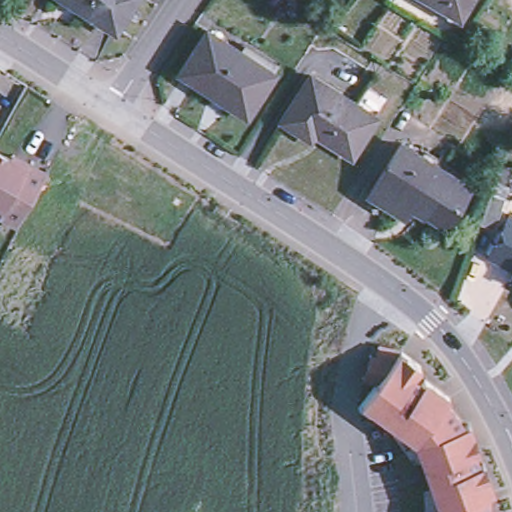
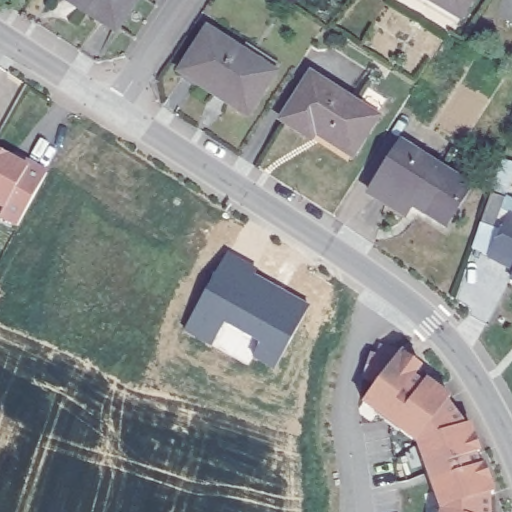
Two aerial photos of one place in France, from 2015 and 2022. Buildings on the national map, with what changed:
unchanged [(112,28),(76,5),(68,0),(129,0),(112,28)]
unchanged [(425,0),(470,0),(462,13),(457,19),(425,0)]
unchanged [(178,73),(205,31),(240,53),(245,44),(277,65),(272,75),(246,116),(178,73)]
unchanged [(380,119),(355,157),(318,133),(313,139),(285,121),(314,77),(380,119)]
unchanged [(471,188),(448,225),(415,204),(407,216),(372,194),(403,145),(471,188)]
unchanged [(10,157),(10,156),(12,152),(28,161),(47,171),(43,177),(17,224),(0,215),(0,213),(3,207),(0,205),(0,151),(10,157)]
unchanged [(512,212),(512,268),(492,257),(512,212)]
new [(277,370),(253,358),(260,344),(223,324),(212,346),(185,331),(229,252),(257,270),(255,276),(308,307),(277,370)]
unchanged [(418,443),(364,403),(380,382),(374,377),(378,357),(396,361),(403,352),(423,366),(418,372),(415,377),(425,384),(428,380),(452,398),(448,403),(466,426),(471,424),(480,448),(481,452),(476,454),(480,466),(485,464),(495,494),(490,494),(490,512),(442,512),(442,511),(418,443)]

